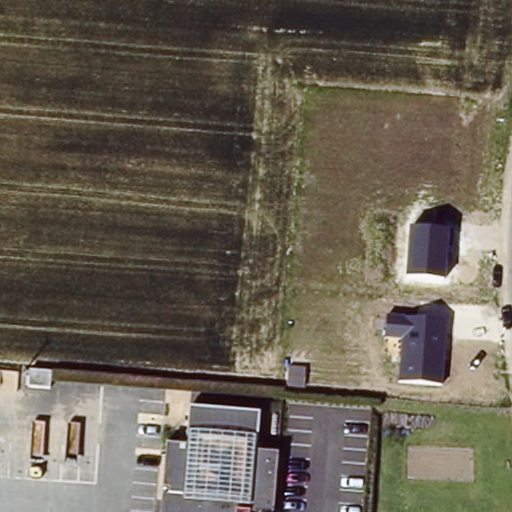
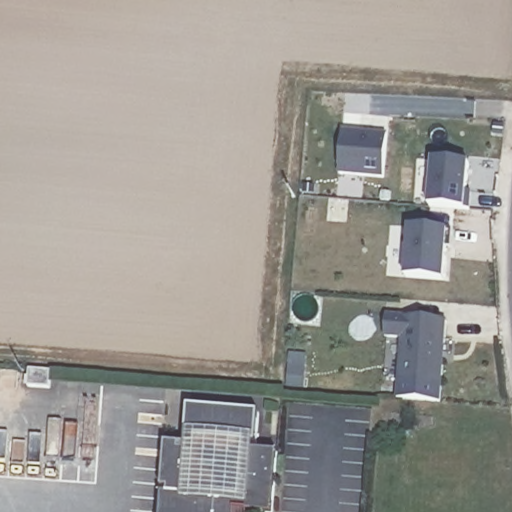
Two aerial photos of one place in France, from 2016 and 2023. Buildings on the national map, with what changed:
new [(340,175),(343,130),(388,134),(385,180),(340,175)]
new [(467,210),(430,206),(432,160),(470,164),(467,210)]
unchanged [(410,226),(448,230),(445,280),(407,276),(410,226)]
unchanged [(401,338),(385,338),(387,315),(447,320),(443,385),(397,382),(401,338)]
unchanged [(59,358),(57,375),(35,374),(35,356),(59,358)]
unchanged [(165,498),(165,490),(162,490),(165,446),(187,448),(189,410),(257,416),(255,444),(250,444),(250,453),(269,455),(281,455),(276,512),(160,512),(161,498),(165,498)]

